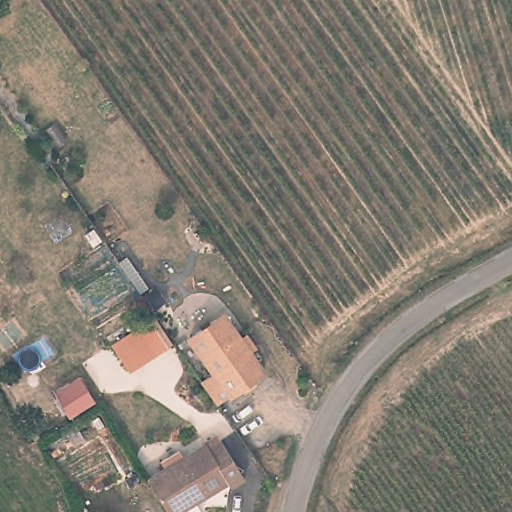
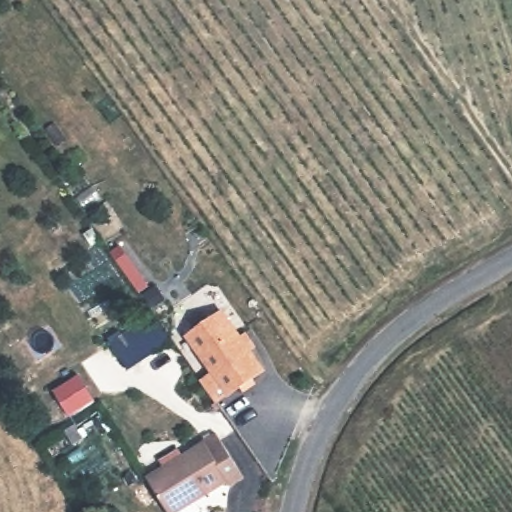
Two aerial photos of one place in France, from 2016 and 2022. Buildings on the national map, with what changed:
unchanged [(153,318),(171,346),(129,371),(112,344),(153,318)]
unchanged [(185,341),(218,318),(259,374),(226,398),(185,341)]
unchanged [(186,455),(208,441),(211,446),(226,437),(250,478),(235,486),(232,480),(212,492),(186,455)]
unchanged [(167,467),(164,460),(182,449),(186,455),(212,492),(199,499),(206,511),(204,512),(173,512),(150,477),(167,467)]

